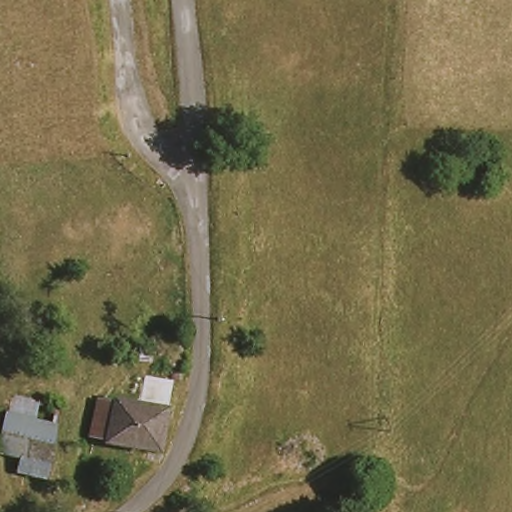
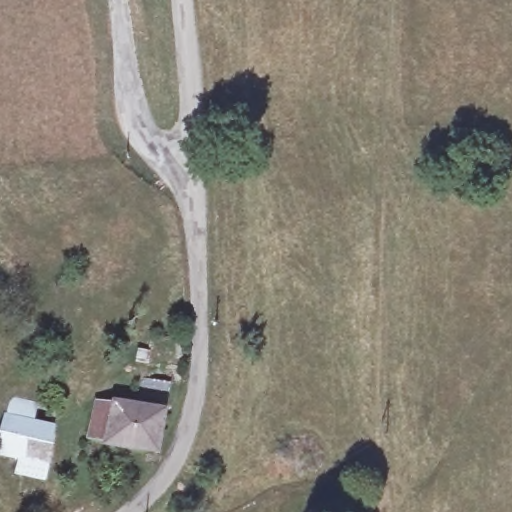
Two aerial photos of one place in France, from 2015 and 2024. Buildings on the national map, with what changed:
unchanged [(142,392),(172,402),(165,423),(154,458),(143,467),(120,457),(131,423),(134,413),(142,392)]
unchanged [(82,445),(94,411),(131,423),(120,457),(82,445)]
unchanged [(15,478),(17,464),(0,461),(0,439),(6,417),(60,432),(48,480),(15,478)]

